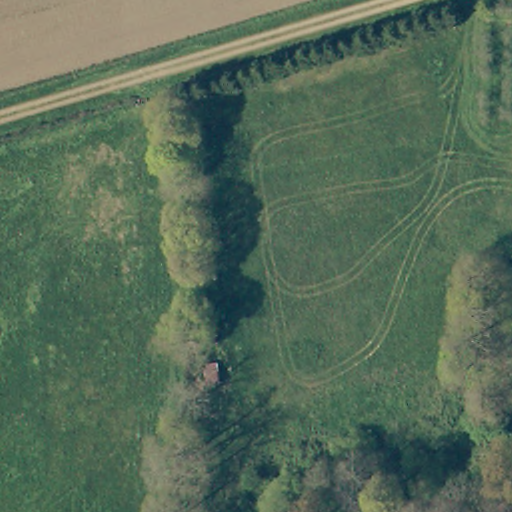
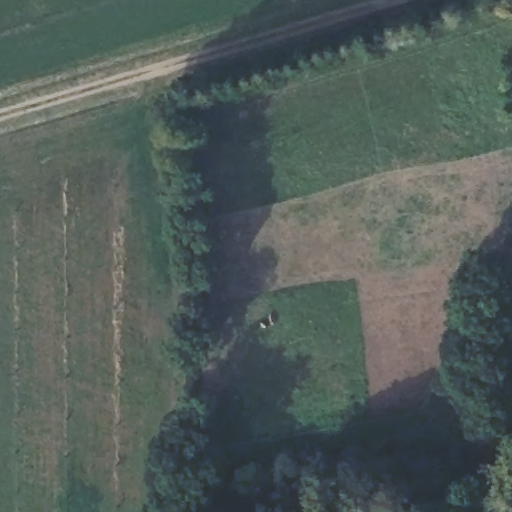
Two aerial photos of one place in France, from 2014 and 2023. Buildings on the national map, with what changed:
[]

